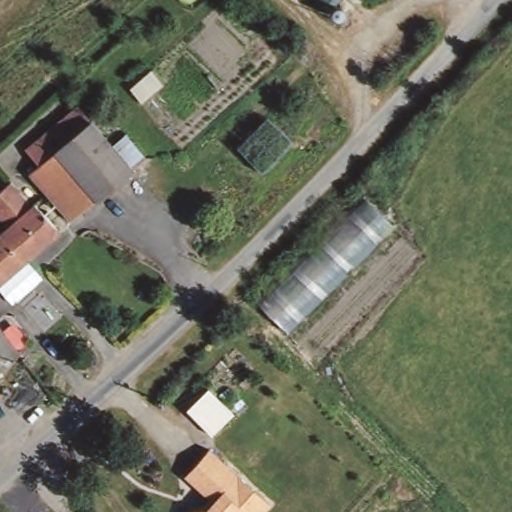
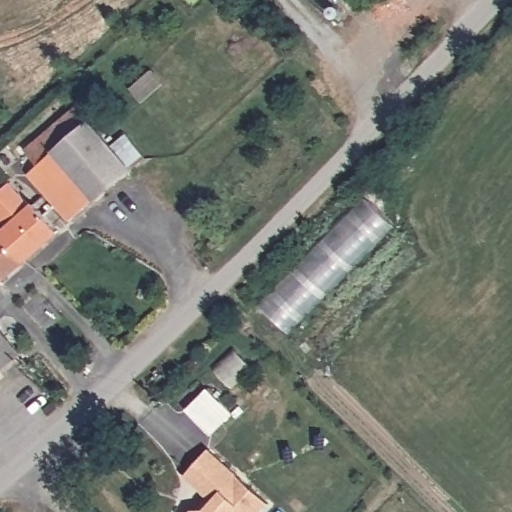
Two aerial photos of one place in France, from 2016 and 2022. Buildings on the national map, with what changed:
unchanged [(76,107),(133,172),(99,204),(95,201),(68,225),(31,182),(40,174),(24,154),(76,107)]
unchanged [(10,228),(0,216),(0,191),(11,181),(35,206),(40,202),(63,228),(32,257),(7,231),(10,228)]
unchanged [(397,226),(286,333),(255,301),(365,194),(397,226)]
unchanged [(7,231),(32,257),(5,283),(0,287),(0,237),(7,231)]
unchanged [(0,375),(0,330),(21,355),(0,375)]
unchanged [(210,495),(186,472),(195,463),(210,446),(270,502),(260,512),(188,512),(193,506),(200,506),(210,495)]

